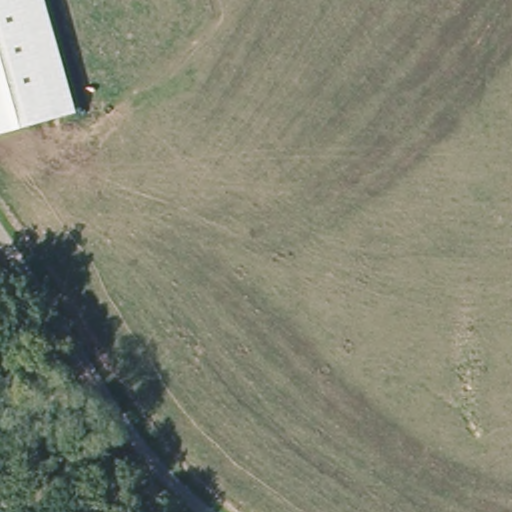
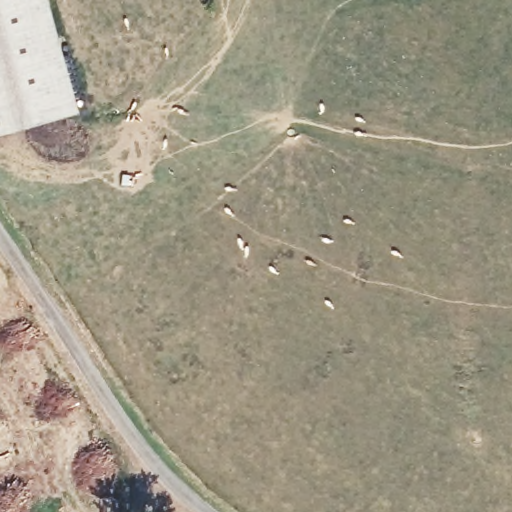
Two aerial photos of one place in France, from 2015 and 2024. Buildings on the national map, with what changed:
unchanged [(77,112),(0,134),(0,0),(46,0),(77,112)]

